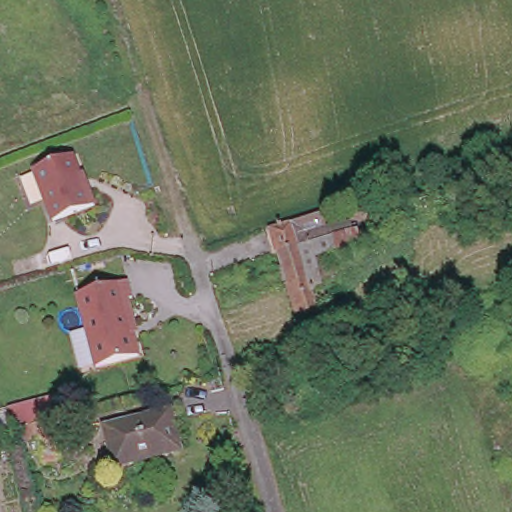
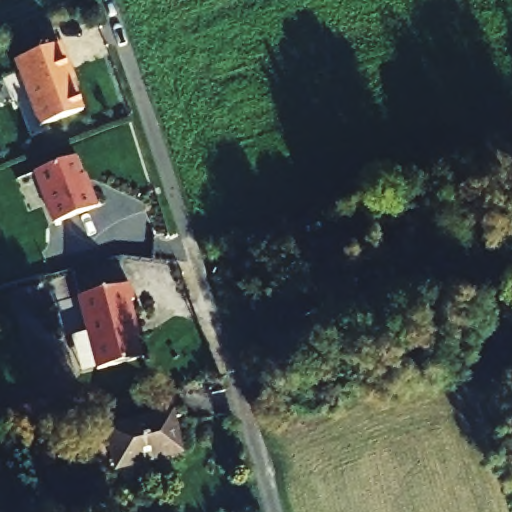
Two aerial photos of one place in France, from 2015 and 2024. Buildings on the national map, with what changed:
new [(61,44),(75,79),(70,80),(73,90),(75,89),(84,111),(41,127),(22,77),(25,76),(19,60),(61,44)]
unchanged [(93,190),(95,189),(102,207),(60,221),(42,170),(81,156),(93,190)]
unchanged [(272,234),(302,224),(323,216),(326,224),(308,230),(310,239),(329,232),(331,241),(280,258),(272,234)]
unchanged [(331,241),(355,235),(359,247),(336,255),(340,268),(363,260),(367,272),(344,280),(293,296),(280,258),(331,241)]
unchanged [(348,292),(328,300),(332,312),(302,323),(293,296),(344,280),(348,292)]
unchanged [(134,300),(126,302),(140,359),(98,370),(79,296),(130,283),(134,300)]
unchanged [(273,370),(302,360),(307,377),(278,387),(273,370)]
unchanged [(173,413),(183,454),(117,470),(107,430),(173,413)]
unchanged [(8,435),(69,420),(73,438),(14,454),(8,435)]

